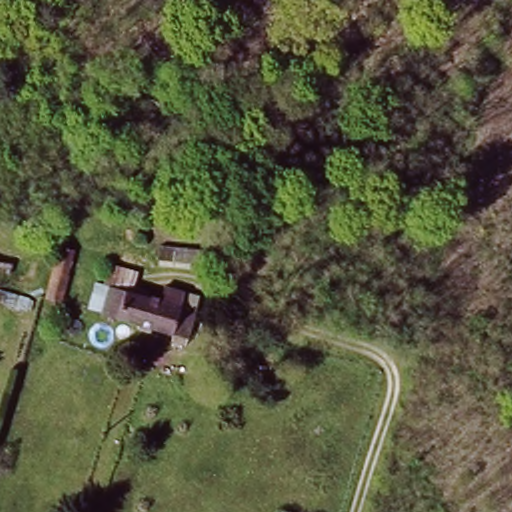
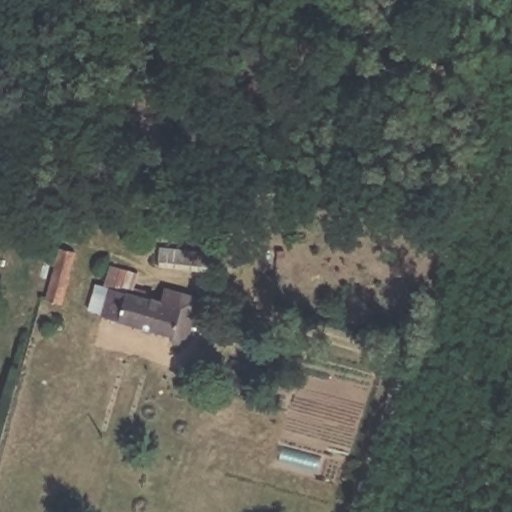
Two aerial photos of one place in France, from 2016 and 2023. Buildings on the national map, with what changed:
unchanged [(57,300),(37,293),(46,260),(52,241),(72,247),(64,274),(57,300)]
unchanged [(187,336),(87,310),(92,279),(105,282),(107,267),(130,272),(130,288),(162,296),(163,282),(185,285),(182,303),(195,306),(187,336)]

